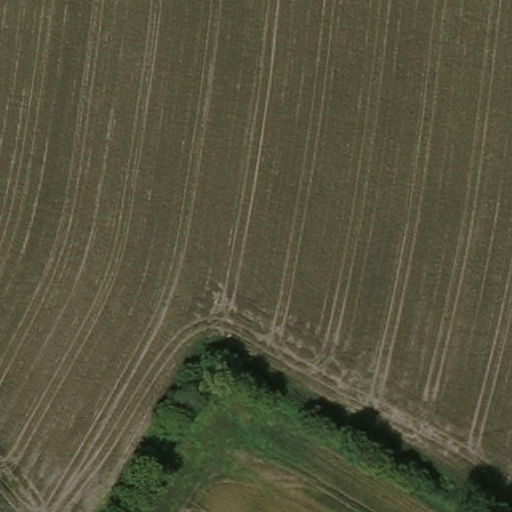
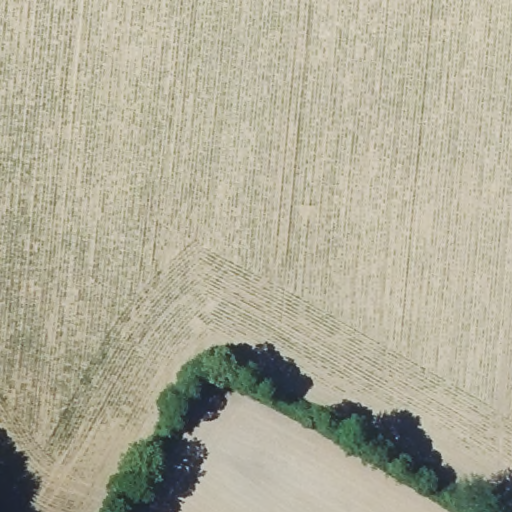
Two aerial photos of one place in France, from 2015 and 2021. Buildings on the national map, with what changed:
[]

